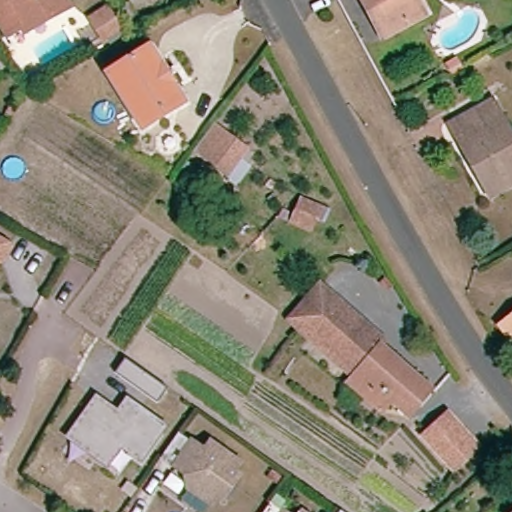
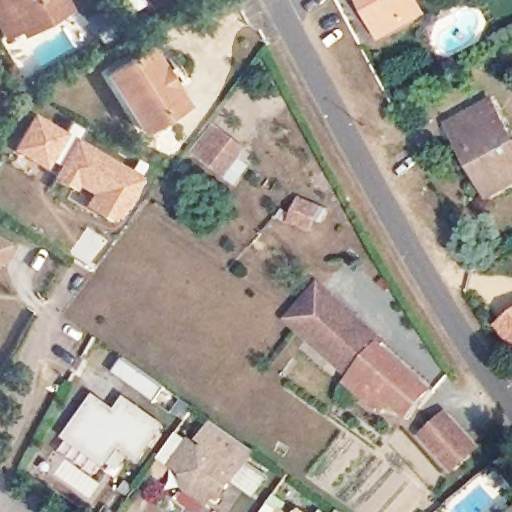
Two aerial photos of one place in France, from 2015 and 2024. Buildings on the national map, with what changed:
unchanged [(6,35),(0,25),(0,0),(61,0),(67,11),(40,25),(26,32),(22,25),(6,35)]
unchanged [(417,0),(420,5),(387,23),(379,28),(363,0),(417,0)]
unchanged [(102,44),(90,51),(80,30),(91,24),(102,44)]
unchanged [(185,106),(143,132),(109,76),(151,50),(185,106)]
unchanged [(464,136),(457,124),(496,103),(512,134),(512,185),(490,196),(480,177),(459,139),(464,136)]
new [(51,156),(54,158),(48,168),(14,149),(36,113),(66,130),(51,156)]
new [(86,203),(92,192),(77,183),(75,187),(54,174),(61,161),(51,156),(71,120),(84,127),(79,135),(146,177),(119,222),(86,203)]
unchanged [(218,128),(247,152),(227,176),(198,153),(218,128)]
unchanged [(298,198),(323,210),(312,235),(286,223),(298,198)]
unchanged [(1,252),(0,251),(0,232),(10,237),(1,252)]
unchanged [(384,342),(436,388),(410,423),(396,410),(388,421),(346,389),(352,381),(280,323),(314,284),(384,342)]
unchanged [(501,329),(512,320),(512,343),(501,329)]
unchanged [(124,359),(168,389),(156,404),(114,374),(124,359)]
unchanged [(95,393),(118,409),(126,396),(168,425),(143,463),(124,448),(109,468),(66,437),(95,393)]
unchanged [(452,466),(417,437),(437,413),(472,442),(452,466)]
unchanged [(173,439),(199,457),(205,449),(234,470),(228,478),(234,482),(217,506),(211,502),(205,510),(185,496),(182,481),(156,463),(173,439)]
unchanged [(270,504),(280,512),(264,512),(270,504)]

